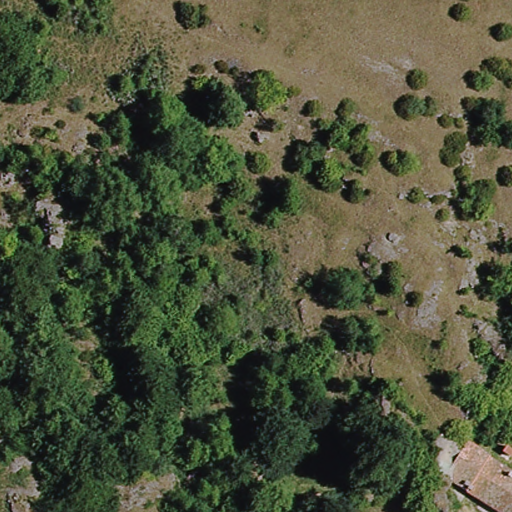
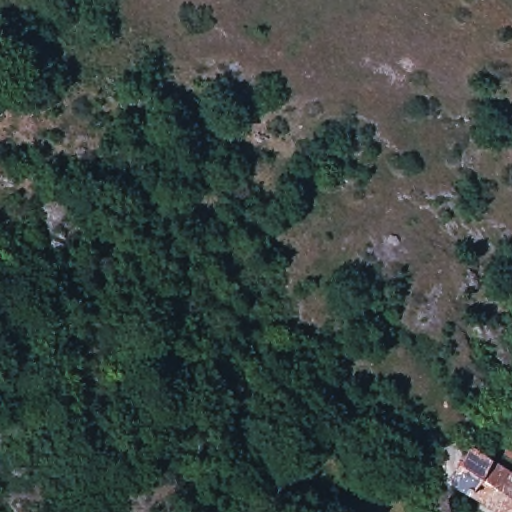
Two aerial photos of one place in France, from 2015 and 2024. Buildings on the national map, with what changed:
unchanged [(504,512),(433,467),(456,432),(512,467),(512,512),(504,512)]

